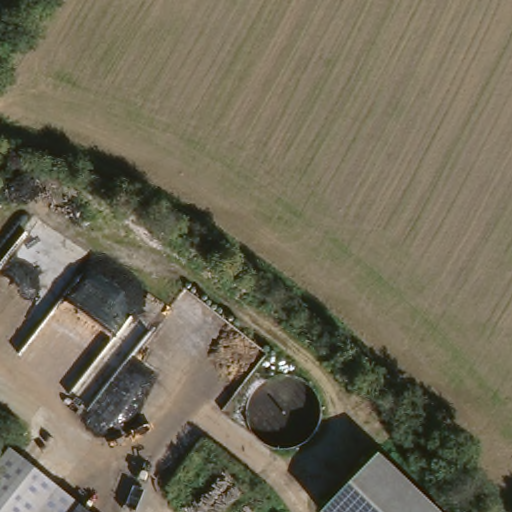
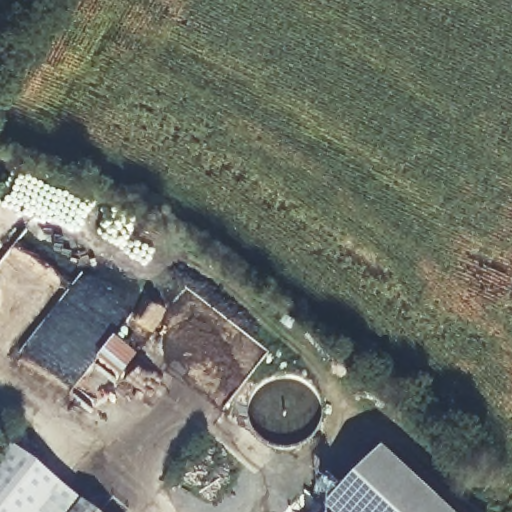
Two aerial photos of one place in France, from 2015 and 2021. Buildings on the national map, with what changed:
unchanged [(64,485),(96,512),(0,512),(0,461),(14,443),(64,485)]
unchanged [(433,512),(321,512),(377,456),(433,512)]

